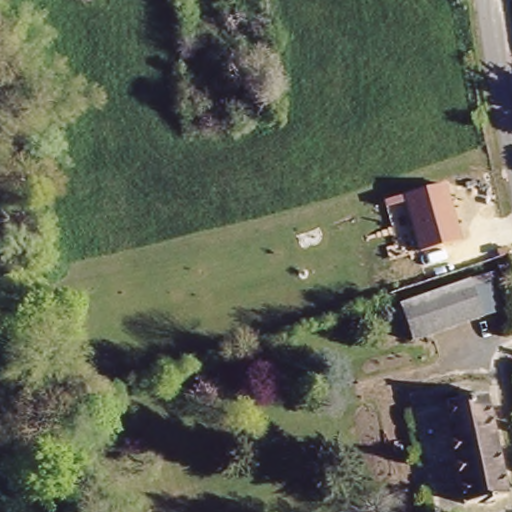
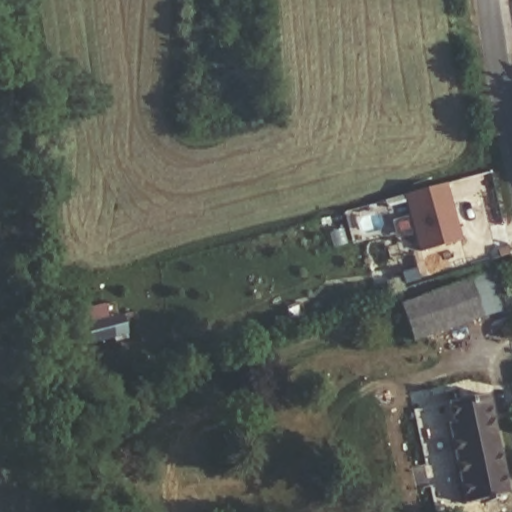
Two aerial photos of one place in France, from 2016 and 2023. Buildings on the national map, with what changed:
unchanged [(405,204),(387,210),(385,201),(446,184),(461,239),(419,252),(405,204)]
unchanged [(495,273),(506,308),(483,316),(412,341),(400,305),(471,281),(495,273)]
unchanged [(507,495),(463,505),(446,425),(451,424),(447,403),(485,395),(507,495)]

